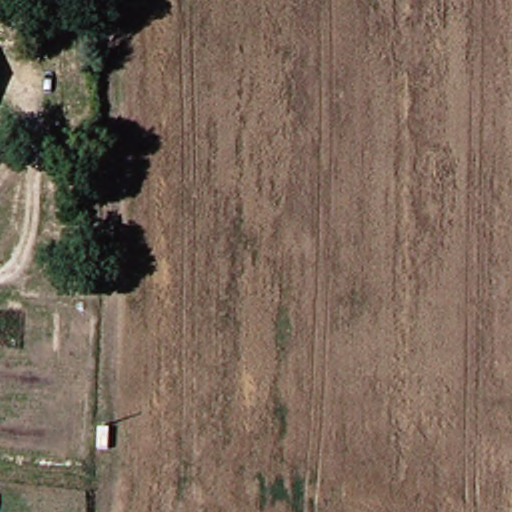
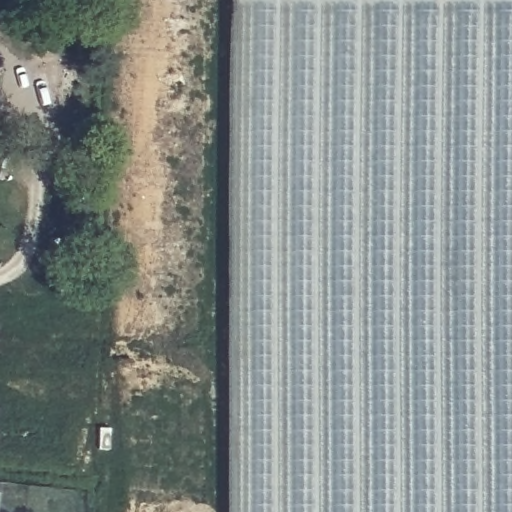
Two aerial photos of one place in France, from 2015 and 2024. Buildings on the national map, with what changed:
new [(512,512),(237,512),(237,0),(512,0),(512,512)]

